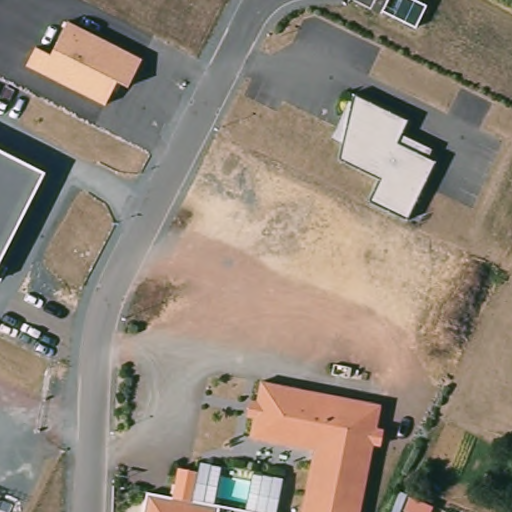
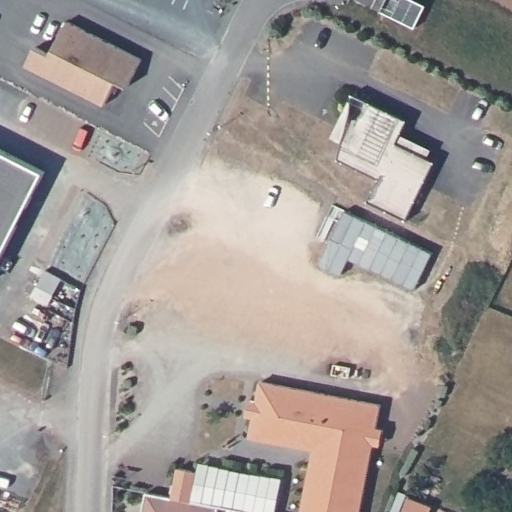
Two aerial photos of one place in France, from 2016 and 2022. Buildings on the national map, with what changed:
new [(392,0),(422,0),(431,5),(420,27),(387,11),(392,0)]
unchanged [(144,59),(129,89),(116,82),(104,106),(25,67),(36,47),(51,54),(68,21),(144,59)]
unchanged [(353,95),(354,95),(408,122),(402,135),(432,152),(429,160),(432,162),(406,220),(368,202),(378,178),(339,158),(342,144),(329,137),(353,95)]
unchanged [(0,148),(46,172),(0,263),(0,148)]
new [(346,211),(433,252),(415,287),(349,257),(341,273),(320,263),(346,211)]
unchanged [(250,398),(258,400),(261,382),(382,407),(377,430),(384,430),(381,448),(374,447),(361,512),(303,512),(313,451),(251,439),(254,421),(247,418),(250,398)]
unchanged [(194,502),(220,507),(219,512),(145,512),(149,493),(171,497),(177,468),(199,471),(194,502)]
unchanged [(439,504),(436,512),(426,512),(411,506),(416,495),(424,498),(439,504)]

